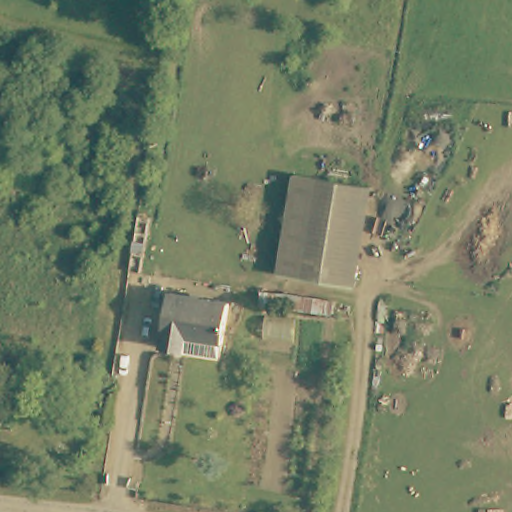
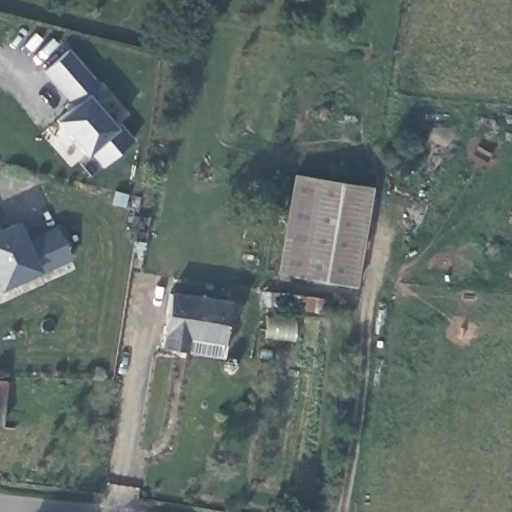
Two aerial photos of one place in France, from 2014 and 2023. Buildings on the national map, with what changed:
new [(86,95),(117,128),(120,125),(133,139),(103,165),(89,152),(86,155),(56,120),(72,106),(43,70),(68,49),(98,84),(86,95)]
unchanged [(284,274),(300,174),(375,186),(360,285),(284,274)]
new [(71,260),(41,271),(0,291),(0,229),(18,220),(27,240),(56,227),(71,260)]
unchanged [(156,338),(158,327),(166,283),(228,297),(218,352),(156,338)]
unchanged [(325,320),(261,312),(264,289),(329,296),(325,320)]

